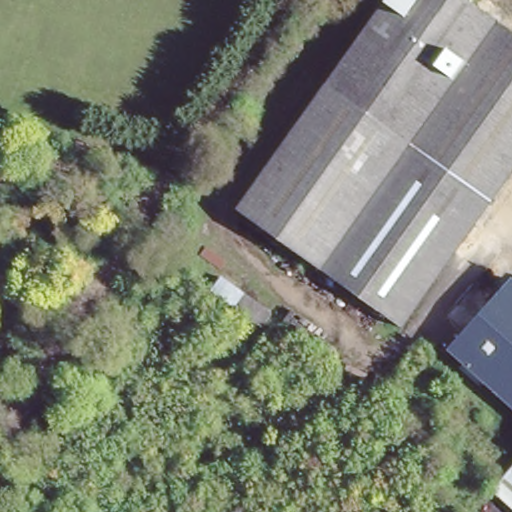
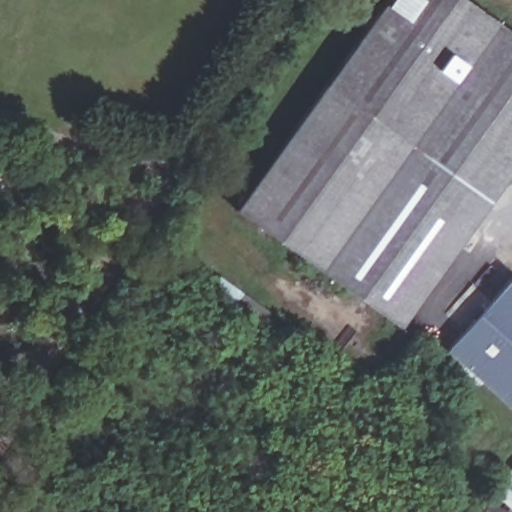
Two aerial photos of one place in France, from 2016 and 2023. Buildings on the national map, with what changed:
unchanged [(242,204),(391,0),(465,0),(512,34),(512,171),(401,322),(242,204)]
unchanged [(512,272),(512,404),(444,345),(511,271),(512,272)]
unchanged [(272,314),(260,329),(207,294),(221,274),(272,314)]
unchanged [(512,459),(512,485),(499,474),(512,459)]

